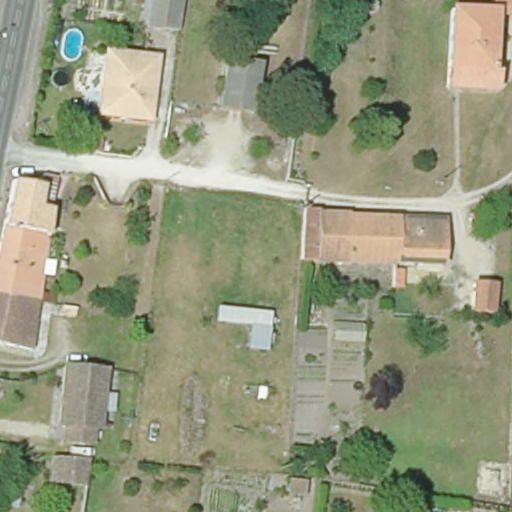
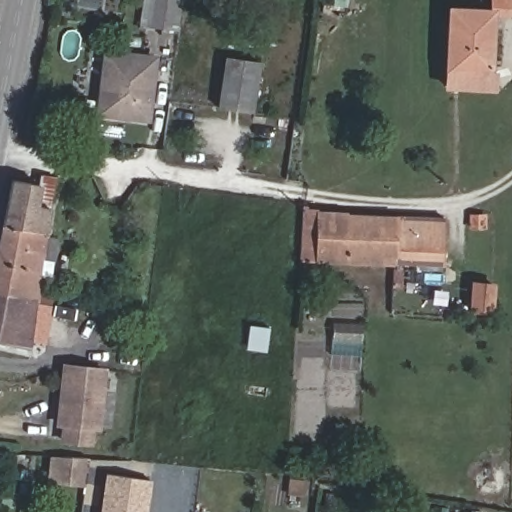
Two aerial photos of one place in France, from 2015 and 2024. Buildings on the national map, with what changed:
unchanged [(185,0),(180,30),(151,26),(154,0),(185,0)]
unchanged [(446,6),(495,10),(493,71),(498,71),(496,93),(446,92),(446,6)]
unchanged [(149,120),(98,115),(106,53),(156,59),(149,120)]
unchanged [(222,109),(229,61),(262,65),(255,114),(222,109)]
unchanged [(53,276),(42,275),(40,291),(55,292),(54,302),(39,300),(0,293),(0,224),(8,180),(35,186),(37,176),(52,179),(43,261),(54,262),(53,276)]
unchanged [(304,256),(301,256),(303,235),(304,235),(303,233),(305,203),(321,206),(321,215),(348,216),(346,258),(317,257),(304,256)]
unchanged [(444,265),(346,258),(348,216),(447,222),(444,265)]
unchanged [(496,318),(472,319),(472,283),(498,284),(496,318)]
unchanged [(39,300),(34,324),(29,348),(0,342),(0,293),(39,300)]
unchanged [(269,353),(247,352),(249,328),(216,324),(217,308),(272,312),(269,353)]
unchanged [(101,428),(94,427),(93,443),(66,441),(67,425),(61,423),(63,407),(67,402),(68,397),(64,397),(67,366),(107,370),(101,428)]
unchanged [(86,486),(51,481),(55,455),(90,458),(86,486)]
new [(145,512),(103,512),(108,473),(150,480),(145,512)]
unchanged [(300,495),(285,492),(287,478),(302,480),(300,495)]

